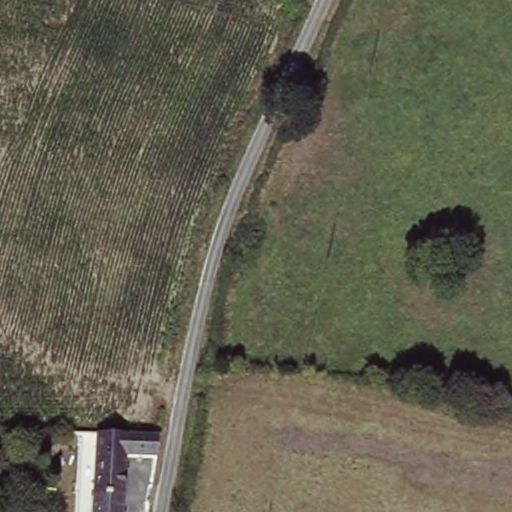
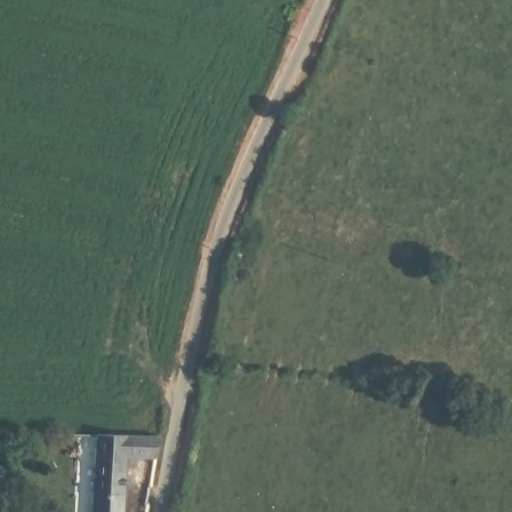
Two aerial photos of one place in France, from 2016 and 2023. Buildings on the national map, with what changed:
unchanged [(126,456),(124,512),(92,512),(95,432),(159,435),(156,456),(126,456)]

